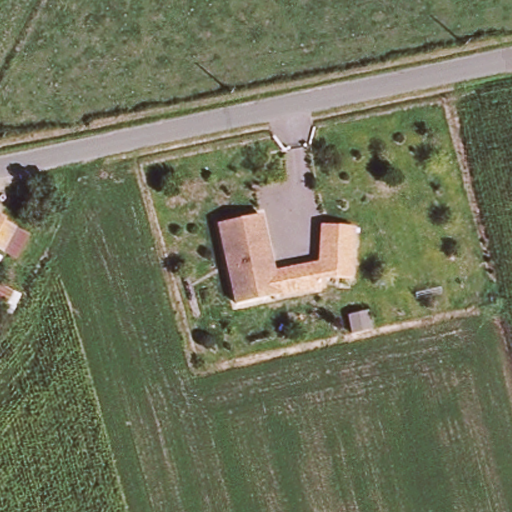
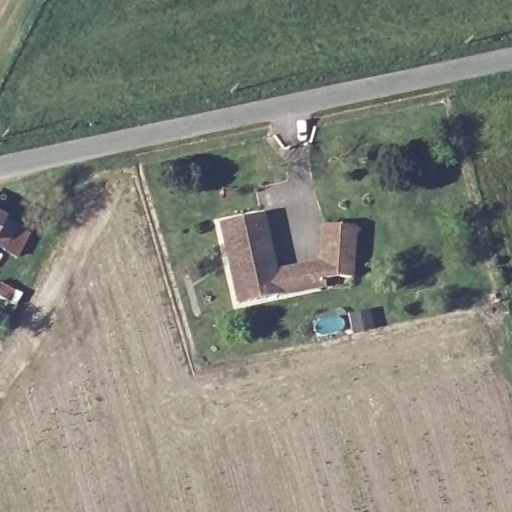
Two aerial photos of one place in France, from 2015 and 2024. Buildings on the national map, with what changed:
unchanged [(231,300),(215,219),(257,210),(266,260),(272,291),(261,293),(231,300)]
unchanged [(0,247),(0,219),(37,237),(27,260),(0,247)]
unchanged [(352,277),(319,275),(321,224),(355,227),(352,277)]

